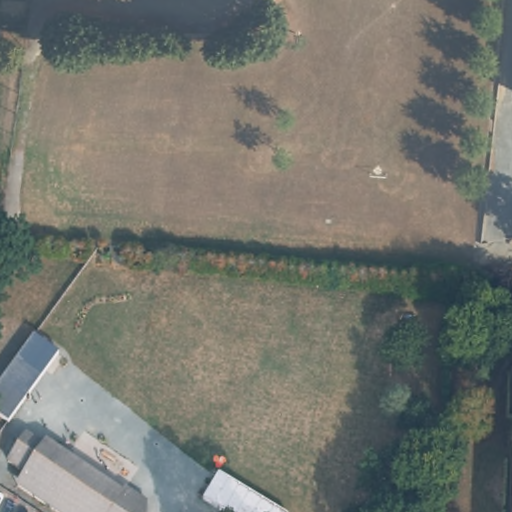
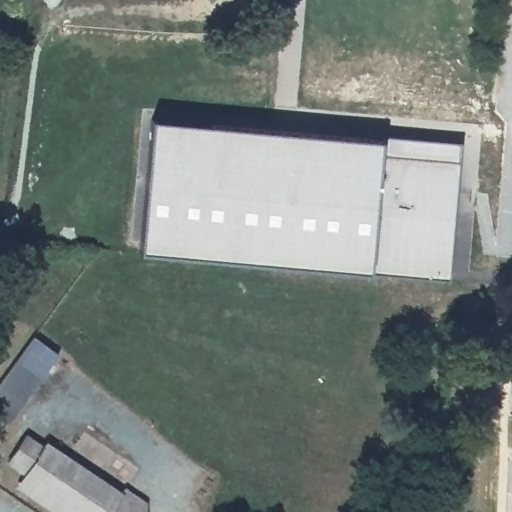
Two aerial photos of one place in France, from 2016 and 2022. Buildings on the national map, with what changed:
new [(383,143),(382,157),(460,164),(447,278),(367,271),(139,250),(150,117),(383,138),(383,143)]
new [(383,143),(383,138),(462,145),(460,164),(382,157),(383,143)]
unchanged [(9,423),(0,417),(0,384),(34,336),(59,353),(9,423)]
unchanged [(26,473),(8,463),(25,436),(44,448),(47,443),(124,493),(126,488),(150,503),(149,512),(57,512),(18,487),(26,473)]

